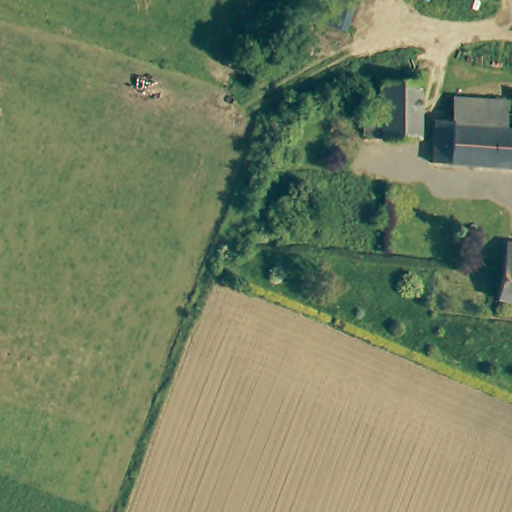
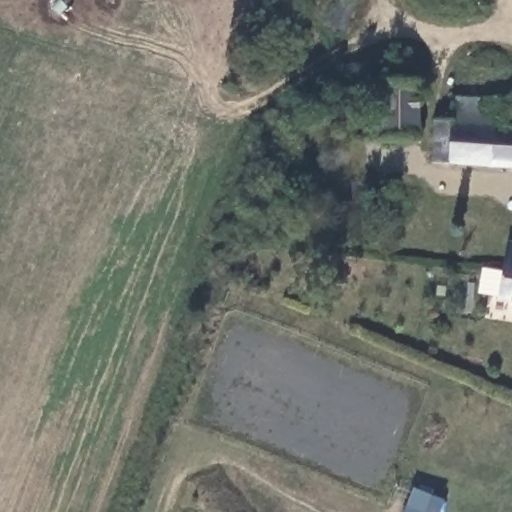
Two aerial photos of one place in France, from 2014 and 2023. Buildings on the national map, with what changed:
unchanged [(297,0),(329,0),(322,22),(293,11),(297,0)]
unchanged [(381,81),(420,83),(418,139),(380,138),(363,138),(363,114),(380,115),(381,81)]
unchanged [(452,120),(453,96),(505,100),(504,125),(512,126),(512,167),(433,162),(434,119),(452,120)]
unchanged [(501,276),(506,245),(512,246),(512,305),(498,302),(501,276)]
new [(444,512),(405,512),(415,489),(448,503),(444,512)]

